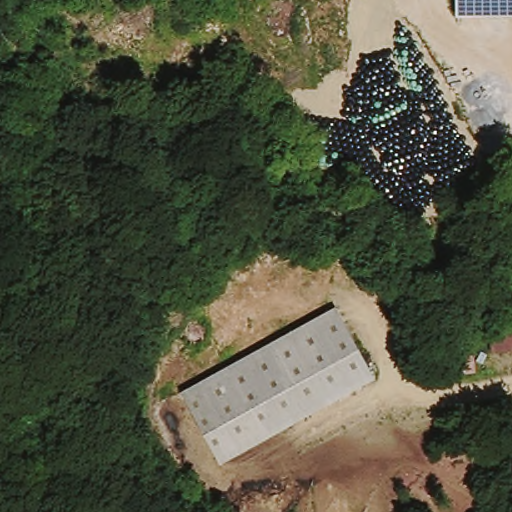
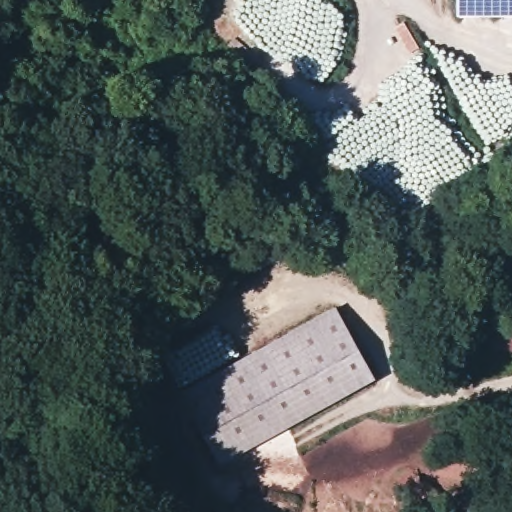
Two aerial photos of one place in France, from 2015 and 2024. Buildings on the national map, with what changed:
unchanged [(456,0),(512,0),(512,16),(456,17),(456,0)]
unchanged [(217,468),(176,392),(333,307),(375,379),(217,468)]
unchanged [(491,325),(512,323),(512,356),(493,357),(491,325)]

